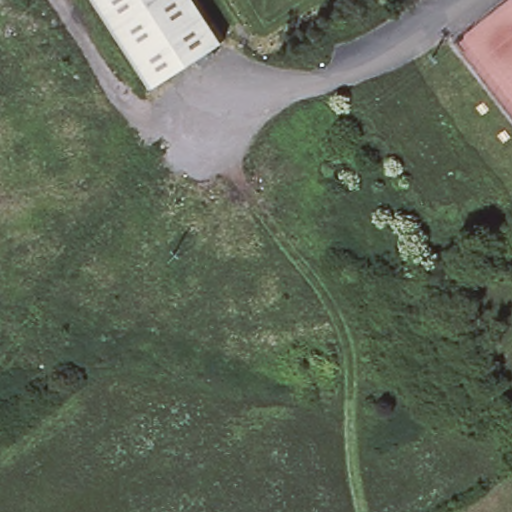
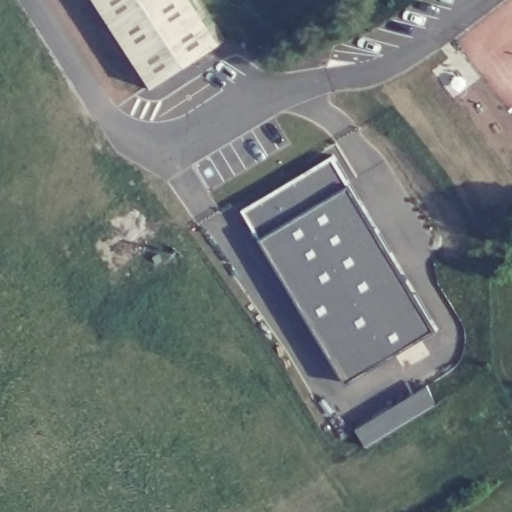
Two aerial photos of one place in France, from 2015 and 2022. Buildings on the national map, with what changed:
unchanged [(131,71),(84,0),(194,0),(206,17),(131,71)]
unchanged [(223,44),(145,94),(131,71),(206,17),(223,44)]
new [(331,156),(419,301),(329,355),(242,210),(331,156)]
new [(419,301),(436,330),(346,384),(329,355),(419,301)]
new [(425,384),(436,402),(365,445),(354,426),(425,384)]

